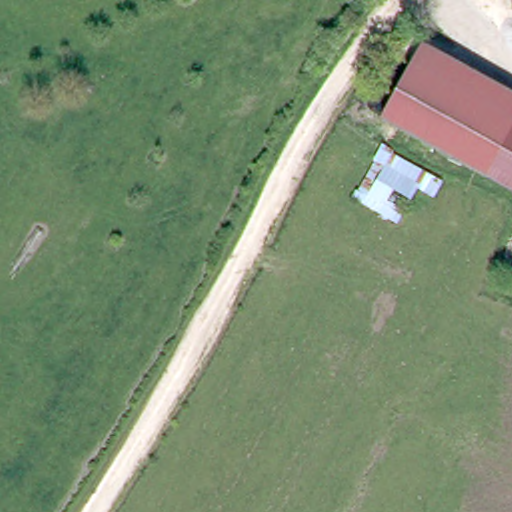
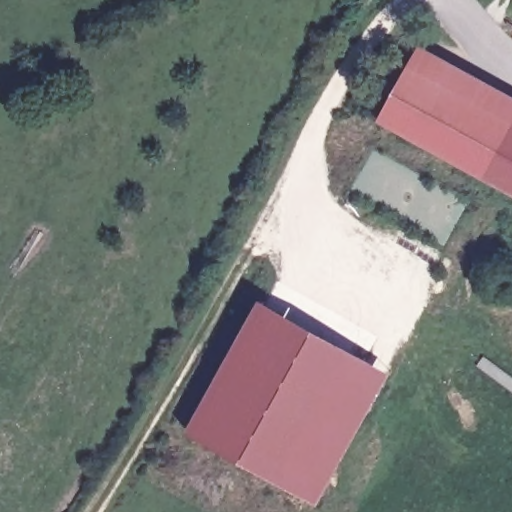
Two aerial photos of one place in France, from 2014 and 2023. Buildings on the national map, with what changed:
unchanged [(384,118),(424,44),(512,94),(512,135),(490,176),(384,118)]
unchanged [(512,192),(495,182),(512,143),(512,192)]
new [(316,502),(189,431),(262,300),(390,371),(316,502)]

